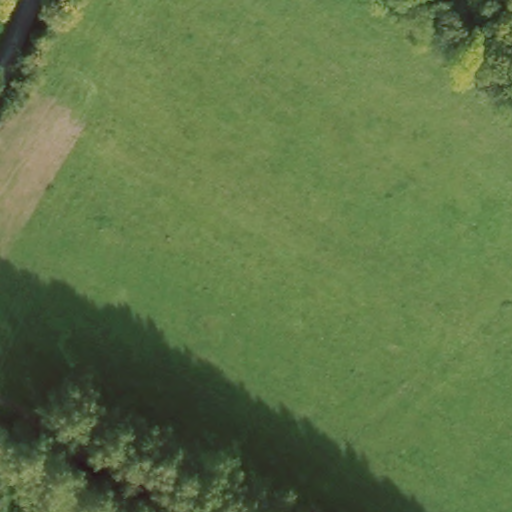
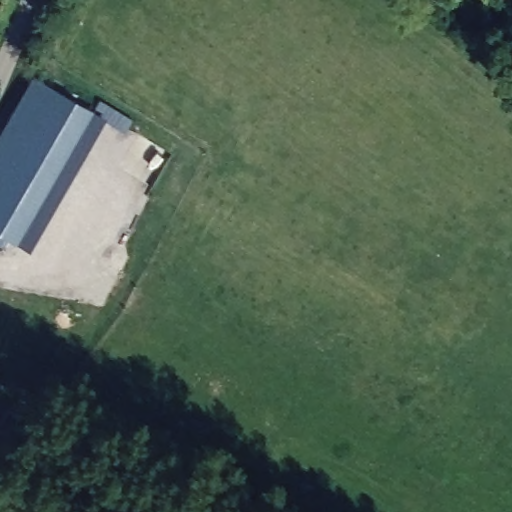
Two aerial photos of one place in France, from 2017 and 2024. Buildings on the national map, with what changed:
new [(23,238),(0,225),(0,135),(36,71),(98,105),(23,238)]

